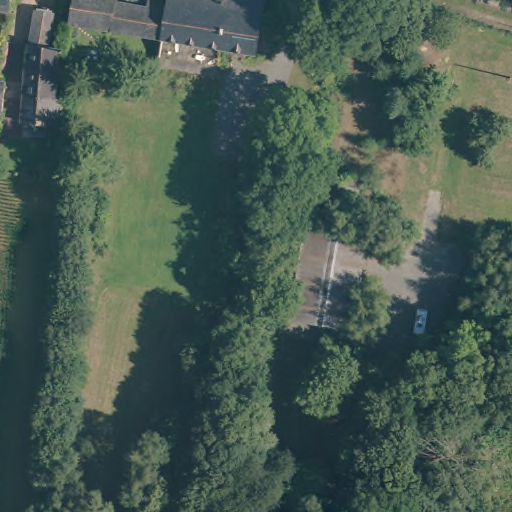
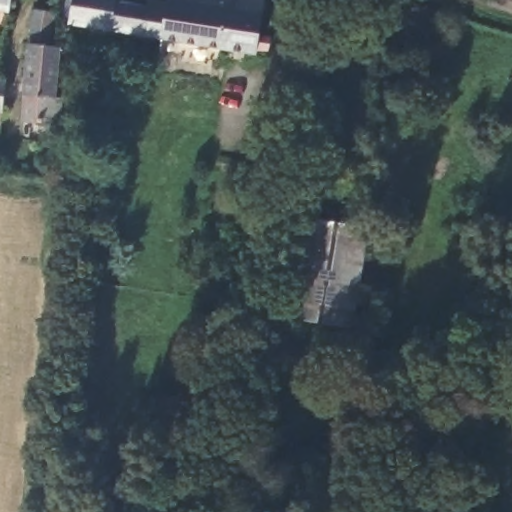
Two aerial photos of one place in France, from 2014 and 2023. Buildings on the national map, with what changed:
unchanged [(0,14),(0,0),(7,0),(4,15),(0,14)]
unchanged [(72,28),(78,0),(119,0),(118,6),(149,11),(149,4),(169,7),(171,0),(265,0),(255,59),(72,28)]
unchanged [(28,55),(29,55),(33,21),(49,23),(45,56),(57,58),(53,108),(60,109),(58,135),(20,130),(28,55)]
unchanged [(3,84),(0,110),(0,83),(3,84)]
unchanged [(365,233),(348,332),(289,323),(304,224),(365,233)]

